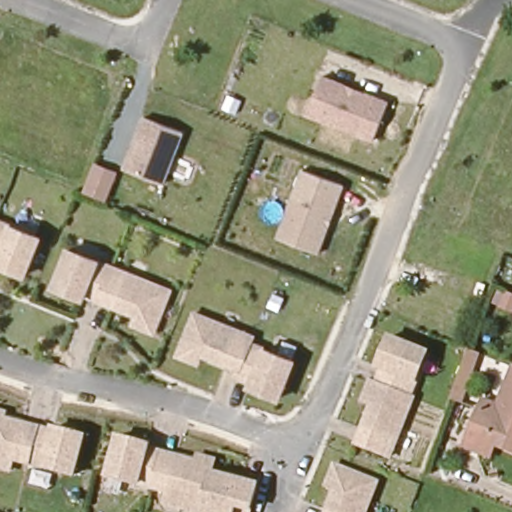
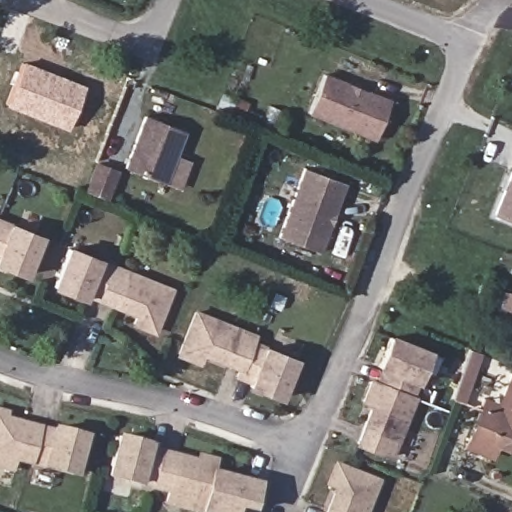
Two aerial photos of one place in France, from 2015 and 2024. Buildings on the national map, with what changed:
new [(68,130),(5,105),(23,60),(86,85),(68,130)]
unchanged [(397,101),(382,139),(316,113),(330,75),(397,101)]
unchanged [(124,169),(144,116),(186,132),(165,185),(124,169)]
unchanged [(119,171),(107,201),(79,192),(91,160),(119,171)]
new [(512,168),(512,223),(492,215),(512,168)]
unchanged [(346,185),(320,252),(277,238),(303,169),(346,185)]
unchanged [(28,275),(0,263),(0,260),(0,258),(0,219),(43,236),(28,275)]
unchanged [(174,289),(157,331),(138,323),(141,315),(88,293),(87,298),(57,286),(72,249),(174,289)]
unchanged [(254,342),(298,360),(283,397),(253,385),(255,380),(240,374),(243,367),(205,353),(202,362),(182,354),(199,312),(257,335),(254,342)]
unchanged [(414,396),(417,398),(393,455),(361,442),(376,404),(367,400),(375,380),(381,383),(387,368),(382,366),(394,337),(432,352),(414,396)]
unchanged [(467,350),(479,353),(462,402),(450,398),(467,350)]
unchanged [(494,461),(486,457),(468,450),(488,403),(502,410),(512,388),(512,454),(499,448),(494,461)]
unchanged [(2,418),(51,430),(52,427),(82,435),(73,473),(12,457),(9,468),(0,466),(0,411),(3,412),(2,418)]
unchanged [(261,483),(254,512),(207,512),(169,502),(172,490),(111,475),(122,435),(153,444),(152,447),(200,461),(201,458),(202,455),(219,459),(217,465),(215,471),(261,483)]
unchanged [(331,484),(338,465),(380,481),(368,512),(339,512),(331,509),(339,487),(331,484)]
unchanged [(330,512),(331,509),(339,512),(330,512)]

